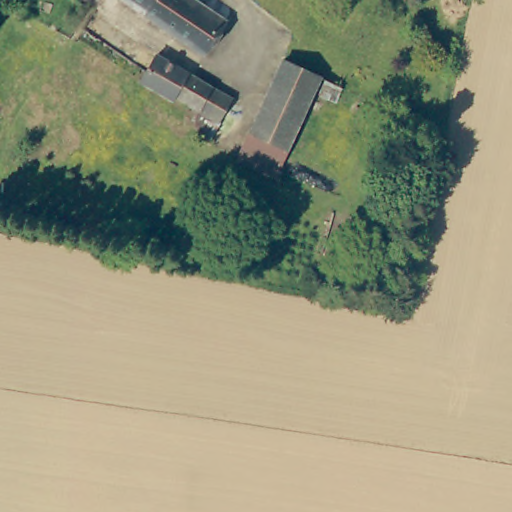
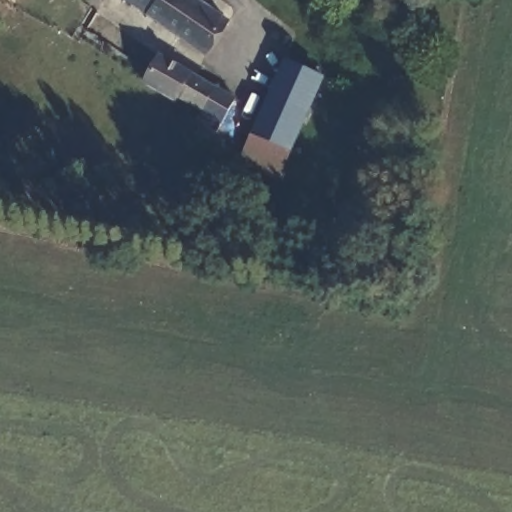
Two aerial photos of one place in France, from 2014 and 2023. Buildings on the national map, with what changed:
unchanged [(127,0),(198,0),(226,19),(204,53),(127,0)]
unchanged [(199,134),(201,129),(195,126),(200,109),(177,96),(176,99),(145,80),(157,54),(235,97),(225,123),(217,143),(199,134)]
unchanged [(321,76),(278,169),(242,153),(286,60),(321,76)]

